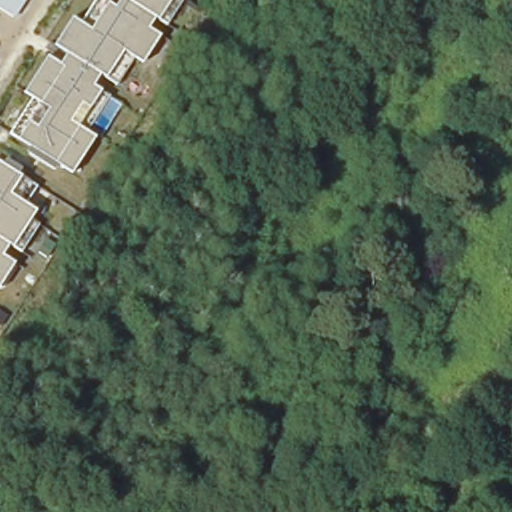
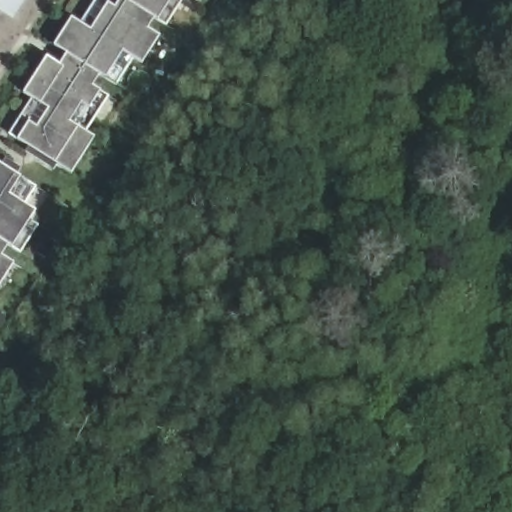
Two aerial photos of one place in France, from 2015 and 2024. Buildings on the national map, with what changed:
unchanged [(0,11),(0,0),(27,0),(15,20),(0,11)]
unchanged [(34,97),(26,91),(47,57),(60,65),(68,53),(56,46),(74,19),(82,23),(97,0),(101,0),(108,4),(115,7),(121,0),(170,0),(151,30),(159,36),(143,63),(136,59),(118,87),(106,78),(99,74),(92,85),(101,91),(110,97),(88,130),(96,135),(72,174),(19,139),(10,132),(34,97)]
unchanged [(22,176),(37,187),(26,203),(36,209),(6,256),(16,263),(0,288),(0,162),(22,176)]

